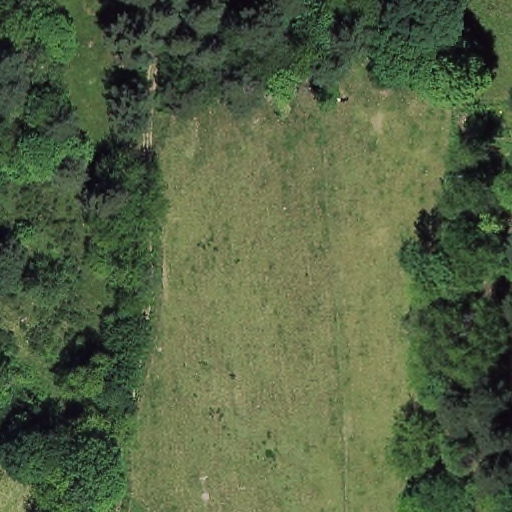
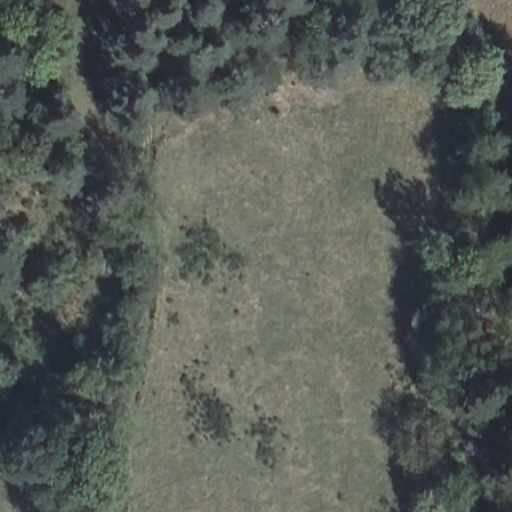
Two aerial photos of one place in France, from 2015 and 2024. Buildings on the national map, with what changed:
[]

